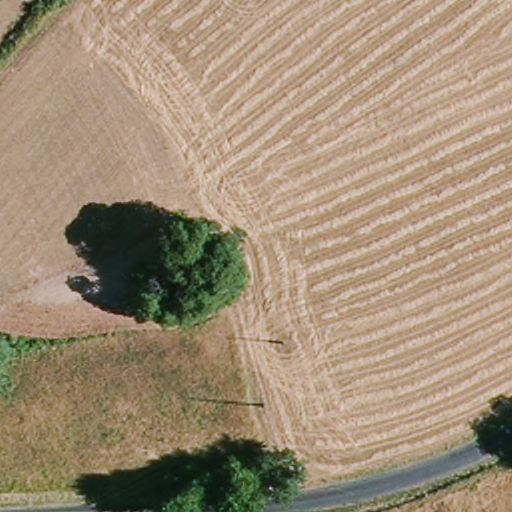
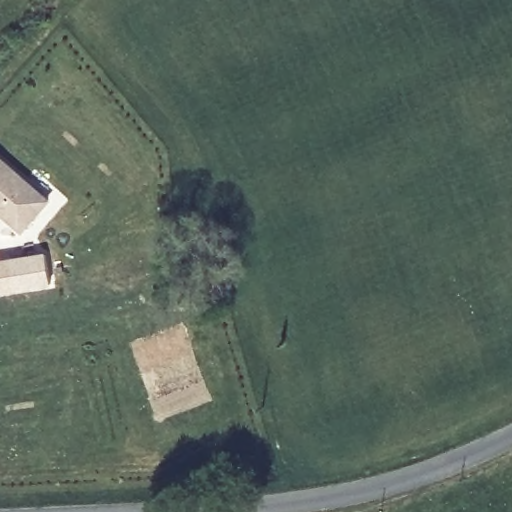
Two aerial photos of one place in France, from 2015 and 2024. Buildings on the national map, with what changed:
new [(53,199),(22,234),(0,215),(0,154),(53,199)]
new [(43,253),(48,283),(0,292),(0,261),(43,253)]

